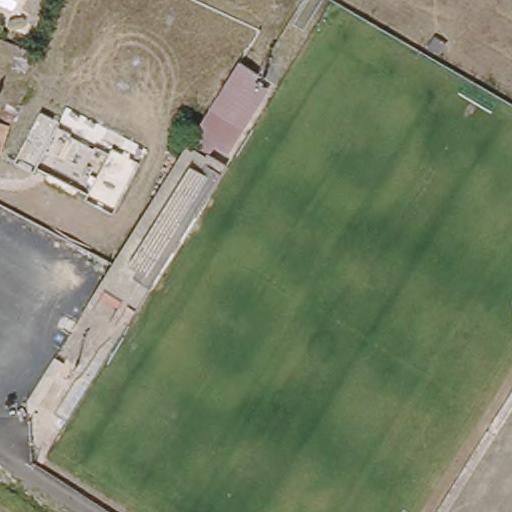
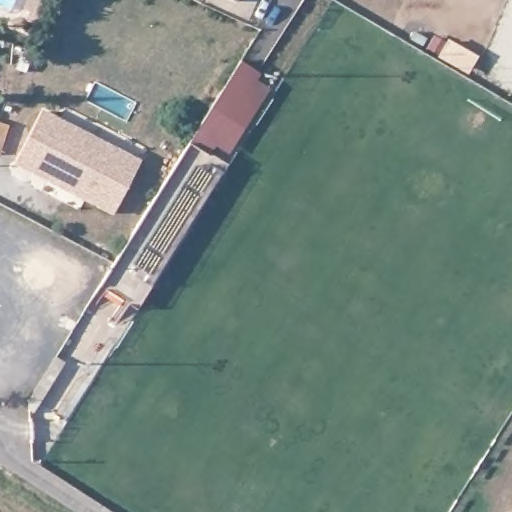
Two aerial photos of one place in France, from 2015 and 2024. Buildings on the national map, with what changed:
new [(39,0),(37,8),(20,2),(20,0),(39,0)]
new [(236,0),(236,1),(234,0),(236,0)]
unchanged [(190,140),(239,64),(258,74),(255,82),(267,90),(225,162),(190,140)]
new [(142,159),(114,216),(15,165),(42,110),(142,159)]
demolished [(93,144),(107,153),(85,195),(73,188),(46,175),(33,167),(54,124),(68,131),(67,135),(91,149),(93,144)]
unchanged [(0,136),(0,125),(4,127),(0,136)]
unchanged [(136,310),(100,286),(190,140),(225,162),(136,310)]
unchanged [(31,398),(58,353),(68,360),(40,405),(31,398)]

